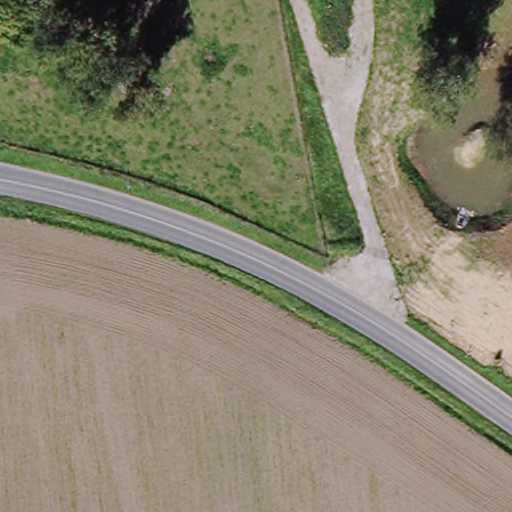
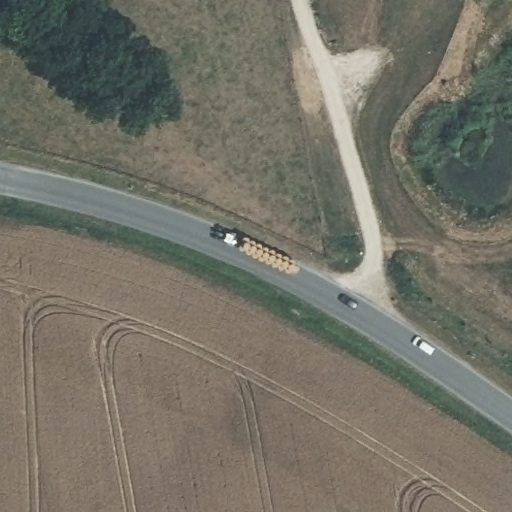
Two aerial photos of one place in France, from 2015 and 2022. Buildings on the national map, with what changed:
[]

